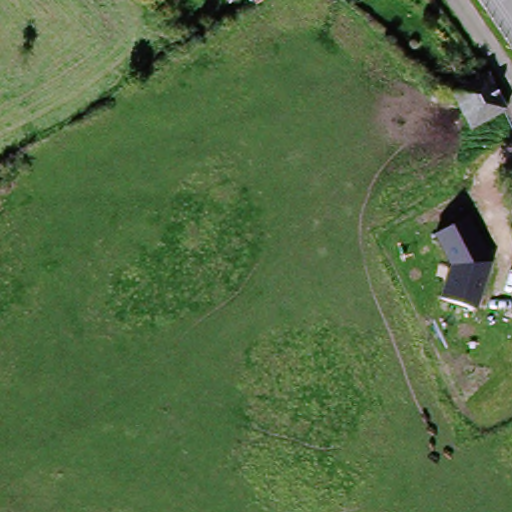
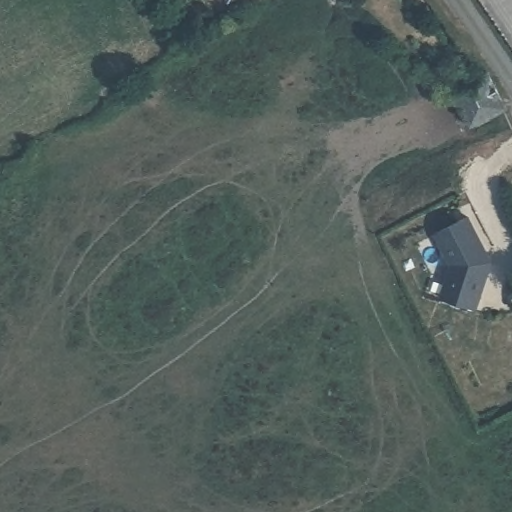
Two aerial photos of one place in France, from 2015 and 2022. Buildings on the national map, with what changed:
unchanged [(236,1),(236,0),(239,0),(236,1)]
unchanged [(466,132),(448,102),(487,80),(506,110),(466,132)]
unchanged [(449,266),(434,234),(468,217),(493,262),(478,308),(440,296),(449,266)]

